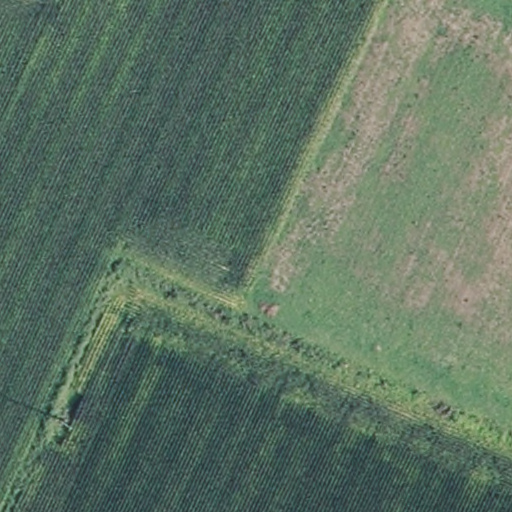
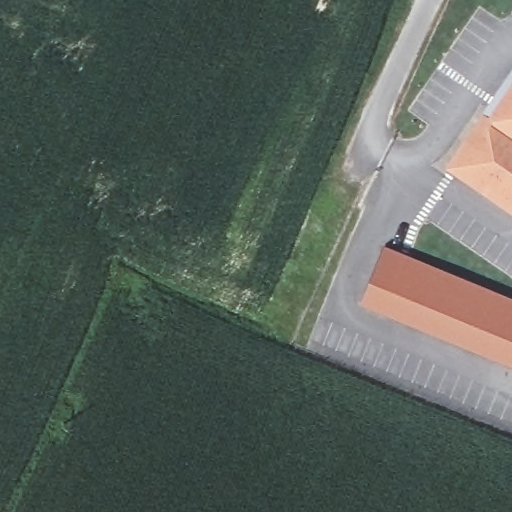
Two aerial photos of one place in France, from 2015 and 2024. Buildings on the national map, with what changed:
new [(446,168),(483,115),(488,118),(512,84),(512,214),(446,168)]
new [(360,305),(384,247),(512,299),(512,366),(360,305)]

